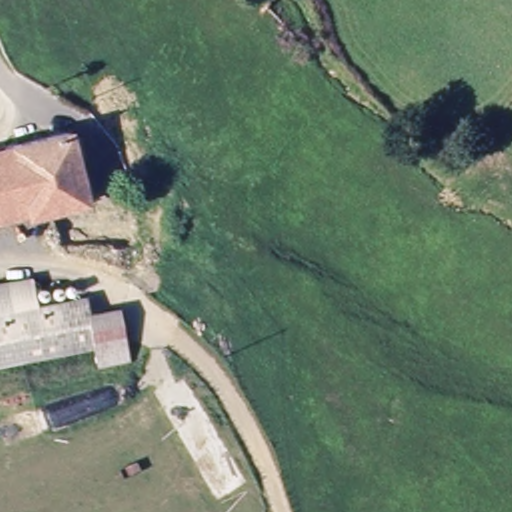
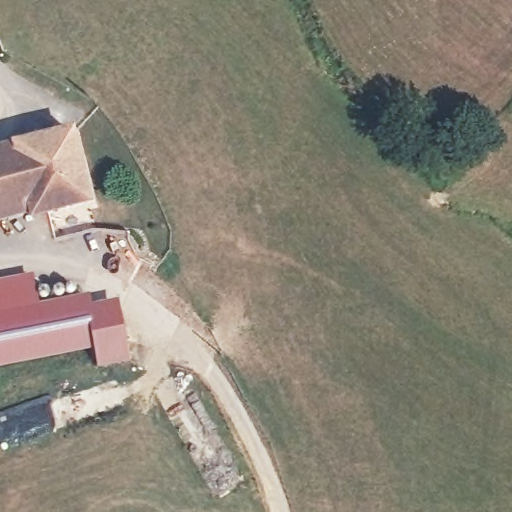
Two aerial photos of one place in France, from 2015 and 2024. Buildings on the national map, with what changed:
unchanged [(0,221),(0,151),(64,137),(74,137),(95,207),(37,222),(31,215),(0,221)]
unchanged [(35,310),(81,301),(83,315),(90,354),(0,368),(0,285),(30,280),(35,310)]
unchanged [(118,309),(125,364),(93,370),(90,354),(83,315),(118,309)]

